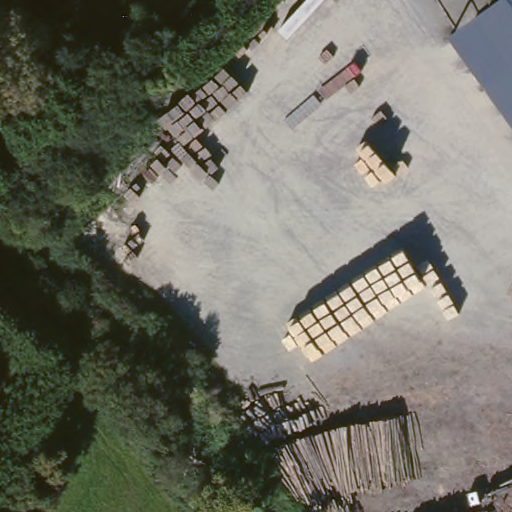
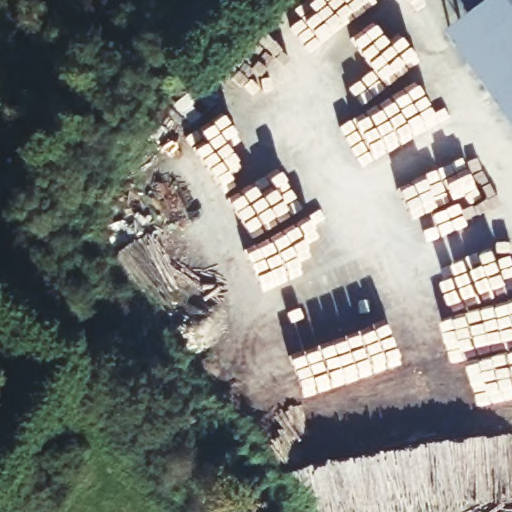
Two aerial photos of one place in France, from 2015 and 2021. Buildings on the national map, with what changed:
unchanged [(512,0),(512,121),(454,40),(510,0),(512,0)]

